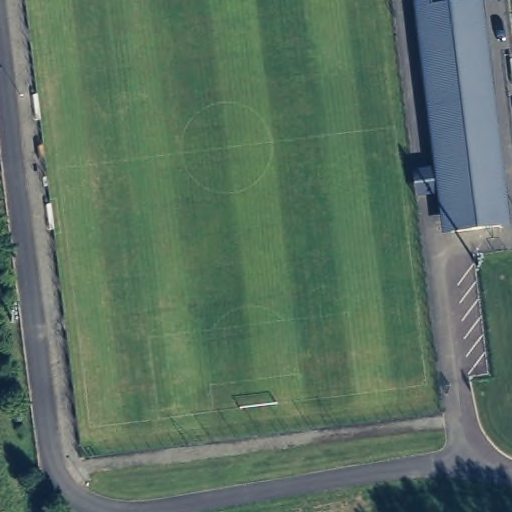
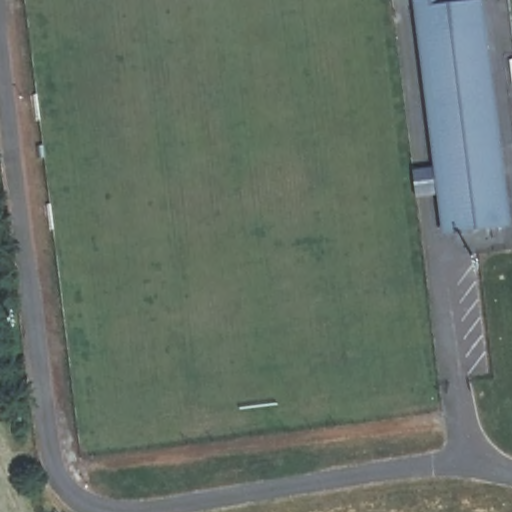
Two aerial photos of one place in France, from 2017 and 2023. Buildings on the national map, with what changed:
unchanged [(512,223),(512,227),(463,232),(438,10),(487,4),(512,223)]

